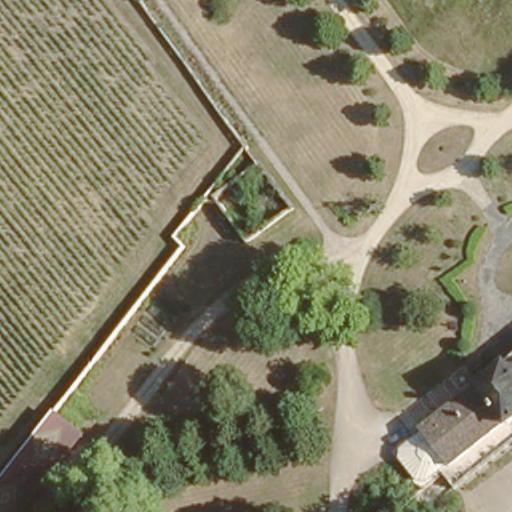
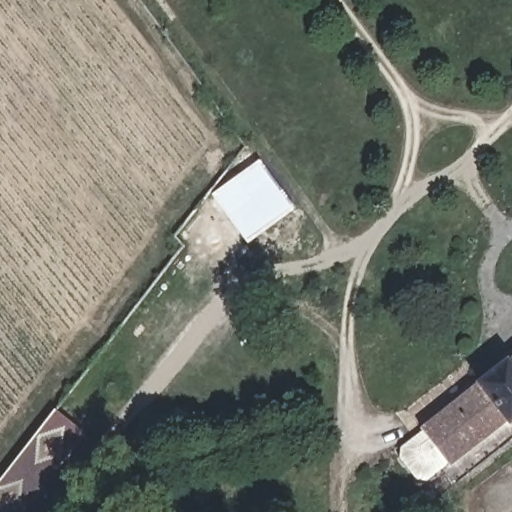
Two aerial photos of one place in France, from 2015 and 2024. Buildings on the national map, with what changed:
new [(248,244),(212,194),(260,159),(296,209),(248,244)]
unchanged [(512,351),(512,429),(505,435),(463,468),(460,471),(452,461),(450,457),(428,427),(423,421),(512,351)]
unchanged [(85,462),(57,496),(44,512),(0,512),(0,506),(60,435),(66,427),(95,451),(85,462)]
new [(401,447),(428,427),(450,457),(452,461),(426,481),(416,480),(400,458),(401,447)]

